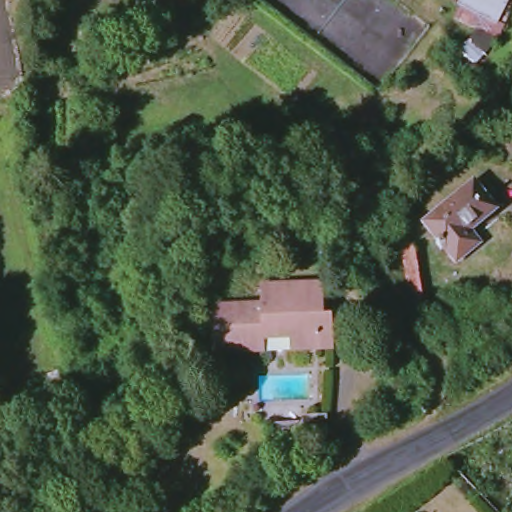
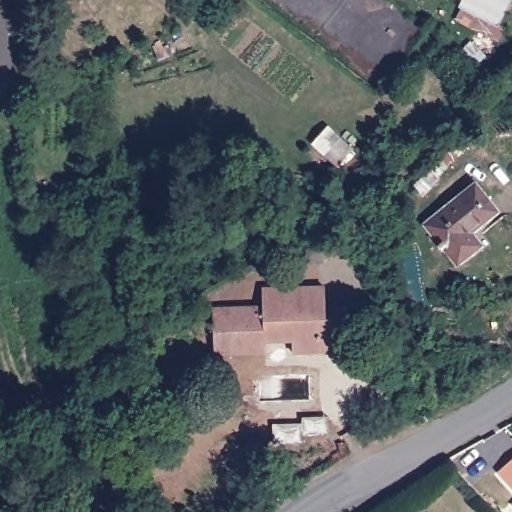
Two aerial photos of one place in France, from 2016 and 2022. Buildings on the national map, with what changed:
unchanged [(465,13),(469,4),(460,0),(510,0),(498,27),(465,13)]
unchanged [(158,50),(172,46),(175,56),(159,60),(158,50)]
unchanged [(422,223),(471,182),(493,210),(481,220),(467,233),(476,244),(454,262),(422,223)]
unchanged [(424,299),(399,301),(394,255),(420,251),(424,299)]
unchanged [(286,364),(286,353),(259,351),(258,362),(208,359),(212,313),(261,317),(263,298),(325,303),(322,335),(329,335),(327,367),(286,364)]
unchanged [(263,453),(264,435),(293,436),(294,431),(319,433),(318,450),(291,448),(291,455),(263,453)]
new [(497,474),(512,460),(512,490),(497,474)]

